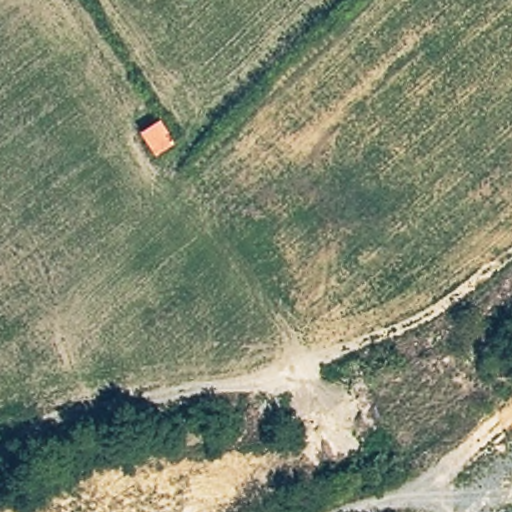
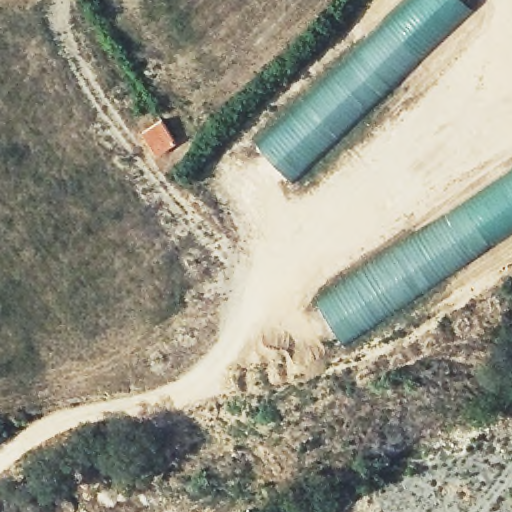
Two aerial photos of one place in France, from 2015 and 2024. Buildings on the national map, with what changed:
new [(293,183),(255,143),(406,0),(463,0),(472,9),(293,183)]
unchanged [(141,130),(161,118),(172,143),(154,155),(141,130)]
new [(343,345),(314,301),(512,171),(512,234),(343,345)]

